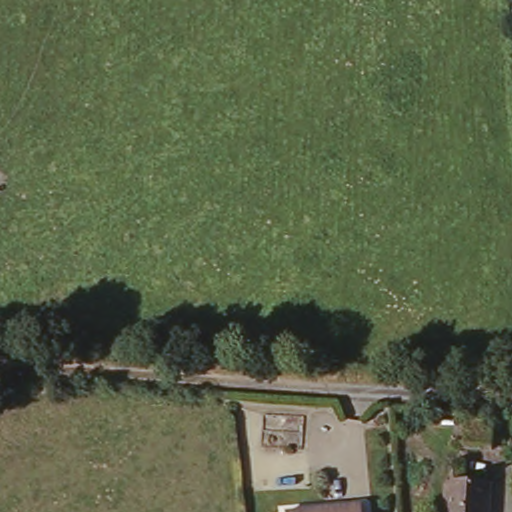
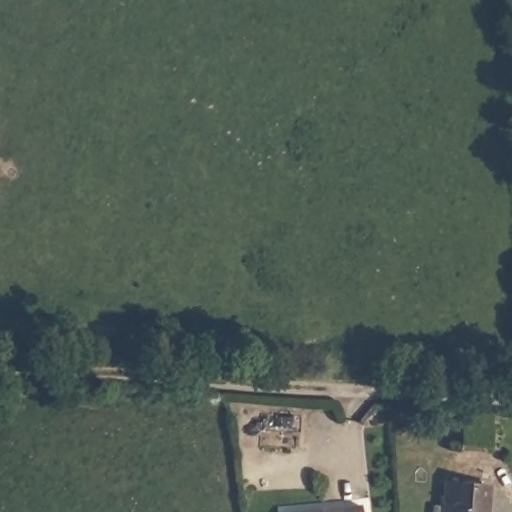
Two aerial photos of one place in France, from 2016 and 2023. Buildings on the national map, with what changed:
unchanged [(490,432),(489,457),(460,456),(460,431),(490,432)]
unchanged [(441,510),(442,486),(484,487),(483,512),(430,512),(431,510),(441,510)]
unchanged [(360,512),(284,512),(284,511),(360,503),(360,512)]

